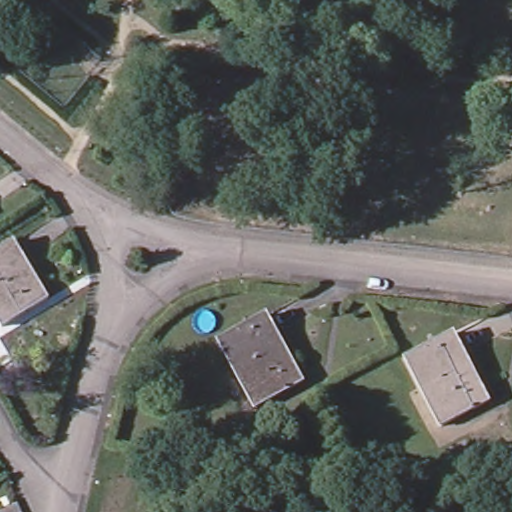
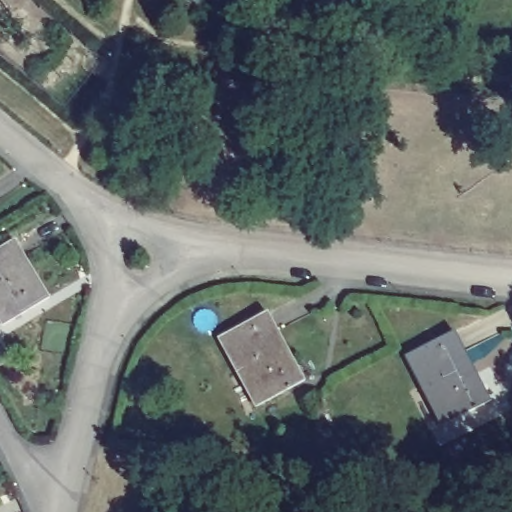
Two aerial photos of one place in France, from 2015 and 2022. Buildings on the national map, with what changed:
unchanged [(51,298),(4,326),(0,319),(0,251),(18,241),(51,298)]
unchanged [(300,384),(253,408),(218,341),(265,317),(300,384)]
unchanged [(447,337),(483,402),(440,427),(402,362),(447,337)]

